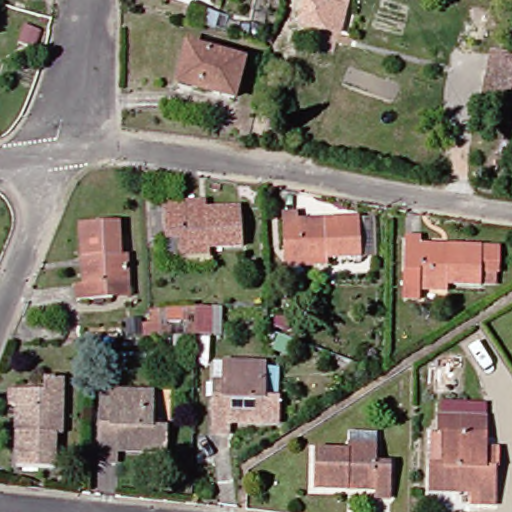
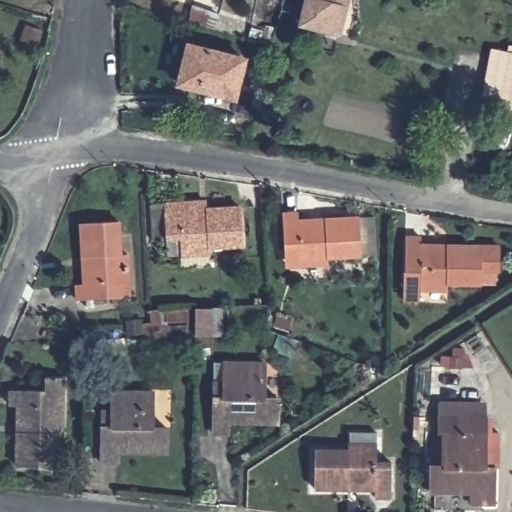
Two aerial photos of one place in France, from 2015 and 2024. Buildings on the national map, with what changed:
unchanged [(291,25),(296,0),(336,0),(329,33),(291,25)]
unchanged [(175,74),(183,46),(239,60),(229,99),(187,88),(173,84),(175,74)]
unchanged [(491,52),(512,56),(512,108),(482,102),(491,52)]
unchanged [(142,236),(140,200),(154,199),(169,198),(170,206),(196,205),(230,203),(232,241),(200,243),(200,250),(171,251),(157,252),(156,236),(142,236)]
unchanged [(351,256),(318,258),(318,265),(291,266),(290,266),(288,250),(275,251),(275,250),(272,214),(288,214),(288,221),(315,220),(349,218),(351,256)]
unchanged [(75,224),(114,222),(115,255),(121,255),(123,284),(107,285),(108,299),(107,299),(71,301),(71,285),(79,285),(77,258),(75,224)]
unchanged [(494,267),(488,266),(488,278),(476,278),(476,280),(442,279),(442,285),(415,285),(415,295),(397,294),(398,267),(400,267),(400,232),(416,233),(439,233),(439,241),(495,242),(494,267)]
unchanged [(119,325),(128,325),(130,321),(140,320),(140,309),(152,309),(150,322),(156,323),(156,305),(174,305),(174,322),(164,323),(164,334),(166,333),(185,333),(185,304),(190,307),(216,307),(214,334),(186,332),(188,349),(167,349),(166,335),(132,334),(117,333),(119,325)]
unchanged [(255,364),(255,399),(268,399),(268,423),(219,423),(219,434),(204,434),(204,398),(204,384),(214,384),(214,363),(255,364)]
unchanged [(366,384),(363,365),(384,372),(366,384)]
unchanged [(35,386),(35,373),(52,373),(52,386),(51,429),(45,429),(45,463),(6,462),(8,426),(9,401),(0,401),(0,385),(35,386)]
unchanged [(143,393),(142,428),(156,428),(156,452),(106,452),(106,463),(91,463),(91,427),(91,413),(101,413),(101,392),(143,393)]
unchanged [(490,469),(490,505),(474,505),(474,493),(425,493),(425,468),(425,432),(434,432),(434,417),(481,417),(481,434),(481,455),(490,455),(490,469)]
unchanged [(308,489),(310,451),(343,452),(343,445),(344,432),(372,433),(372,446),(372,462),(386,463),(385,498),(370,498),(370,490),(343,490),(308,489)]

